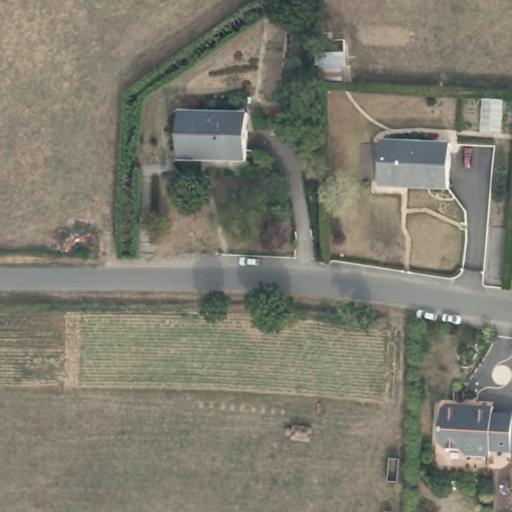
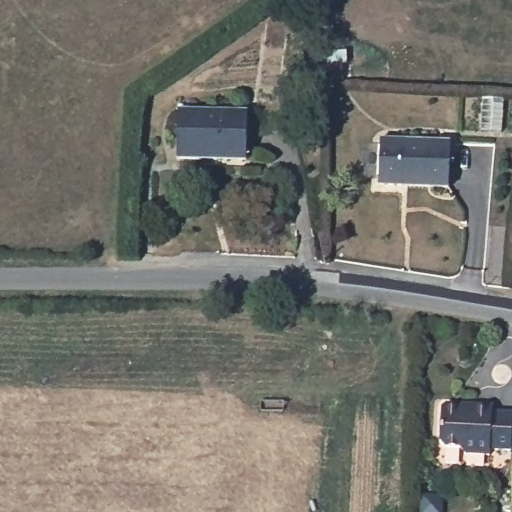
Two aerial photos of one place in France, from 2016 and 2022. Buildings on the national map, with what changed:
unchanged [(509,96),(507,132),(480,130),(483,94),(509,96)]
unchanged [(242,162),(174,162),(176,117),(244,116),(242,162)]
unchanged [(448,186),(380,183),(383,139),(450,142),(448,186)]
unchanged [(488,450),(484,456),(465,455),(458,445),(437,443),(433,438),(436,403),(491,409),(491,414),(510,416),(512,417),(512,453),(507,452),(488,450)]

